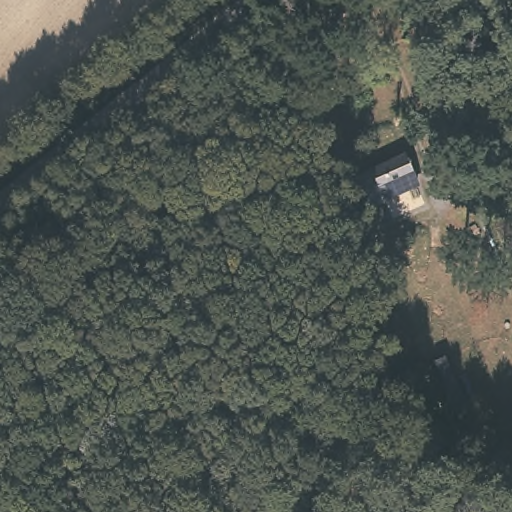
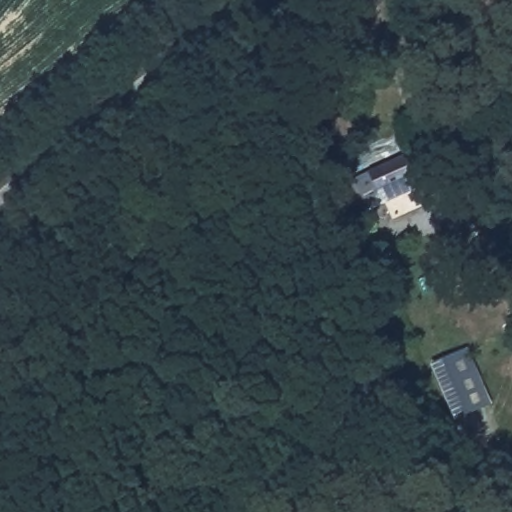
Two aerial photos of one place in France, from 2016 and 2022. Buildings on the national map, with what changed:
unchanged [(352,179),(409,151),(421,191),(366,212),(352,179)]
new [(467,346),(492,404),(458,419),(433,364),(467,346)]

